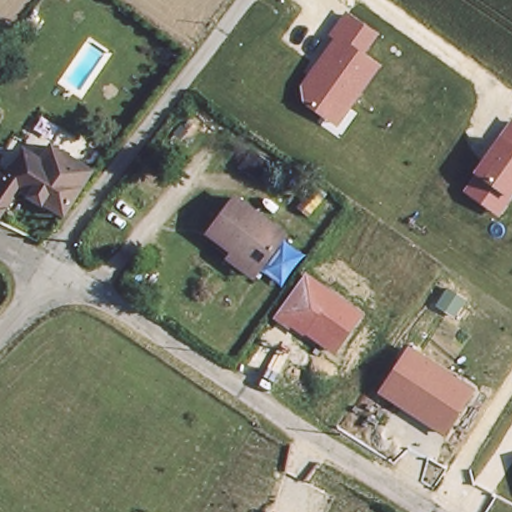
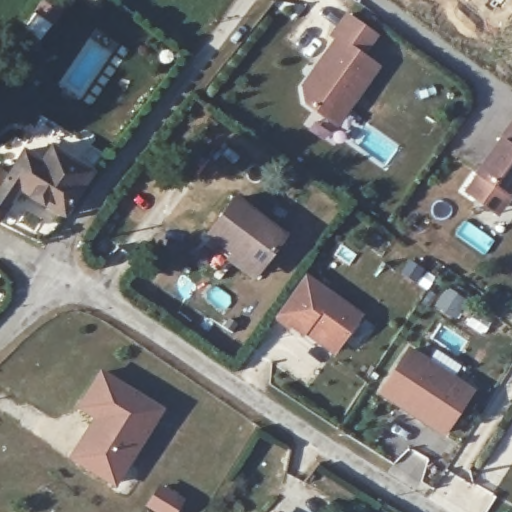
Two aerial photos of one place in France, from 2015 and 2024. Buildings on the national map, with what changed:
new [(500,5),(494,0),(504,0),(500,5)]
unchanged [(379,37),(365,56),(381,67),(337,129),(303,104),(300,86),(332,40),(328,37),(345,12),(379,37)]
unchanged [(462,190),(512,120),(512,198),(499,216),(462,190)]
unchanged [(10,180),(27,150),(45,160),(52,149),(94,175),(68,220),(24,195),(5,229),(0,226),(0,174),(10,180)]
unchanged [(215,254),(220,246),(205,236),(229,200),(281,236),(257,272),(252,279),(215,254)]
unchanged [(363,314),(335,356),(305,335),(304,337),(291,327),(289,330),(274,318),(306,273),(363,314)]
unchanged [(475,390),(444,437),(378,392),(408,346),(475,390)]
new [(163,410),(118,484),(75,456),(98,417),(82,406),(103,372),(163,410)]
new [(177,512),(164,512),(152,505),(162,488),(183,501),(177,512)]

